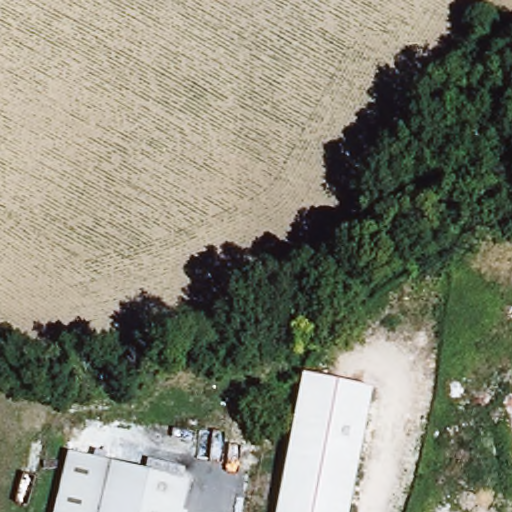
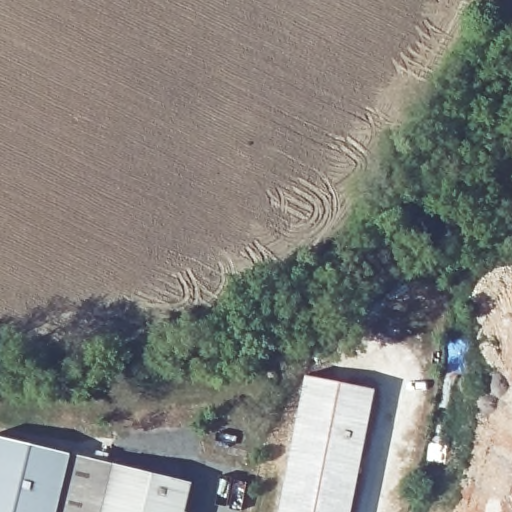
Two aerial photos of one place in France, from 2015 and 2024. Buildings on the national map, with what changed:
unchanged [(305,379),(374,393),(350,512),(278,512),(305,379)]
new [(77,449),(59,512),(0,512),(0,436),(77,449)]
unchanged [(77,449),(197,484),(189,512),(59,512),(77,449)]

